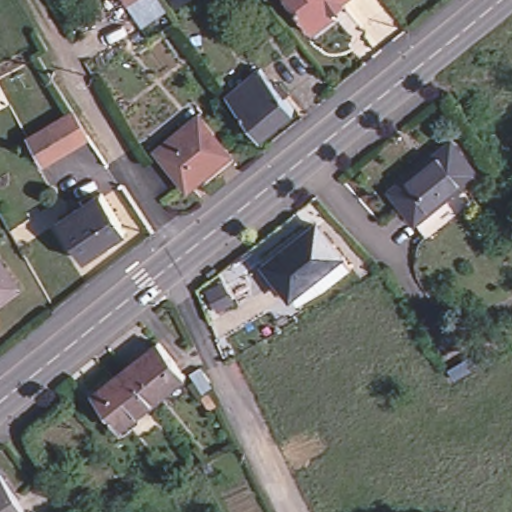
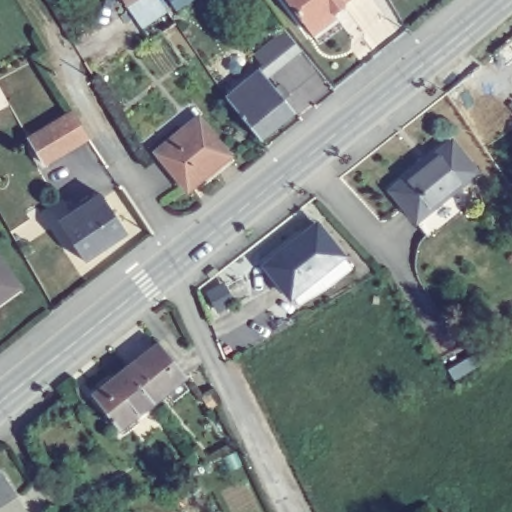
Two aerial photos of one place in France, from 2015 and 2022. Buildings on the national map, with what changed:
unchanged [(162,0),(170,12),(143,28),(126,0),(162,0)]
unchanged [(332,10),(308,29),(283,0),(332,0),(327,5),(332,10)]
unchanged [(220,92),(252,66),(284,106),(252,132),(220,92)]
unchanged [(75,122),(82,133),(35,159),(22,135),(69,109),(75,122)]
unchanged [(189,119),(223,160),(195,182),(191,177),(177,187),(147,151),(189,119)]
unchanged [(420,227),(411,218),(380,185),(438,132),(468,166),(453,179),(462,189),(420,227)]
unchanged [(50,218),(62,210),(60,205),(72,198),(75,202),(92,192),(117,230),(74,256),(50,218)]
unchanged [(282,288),(280,289),(259,262),(255,257),(305,217),(315,230),(331,249),(340,261),(320,277),(286,292),(282,288)]
unchanged [(14,282),(0,291),(0,262),(14,282)]
unchanged [(122,367),(153,342),(180,376),(145,402),(122,367)]
unchanged [(112,427),(86,392),(122,367),(145,402),(112,427)]
unchanged [(20,512),(0,512),(0,481),(20,512)]

